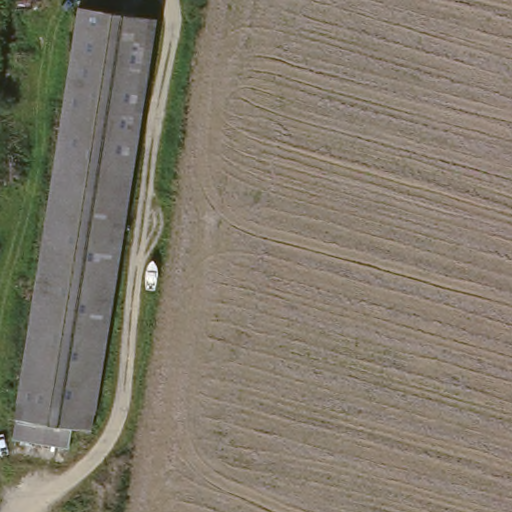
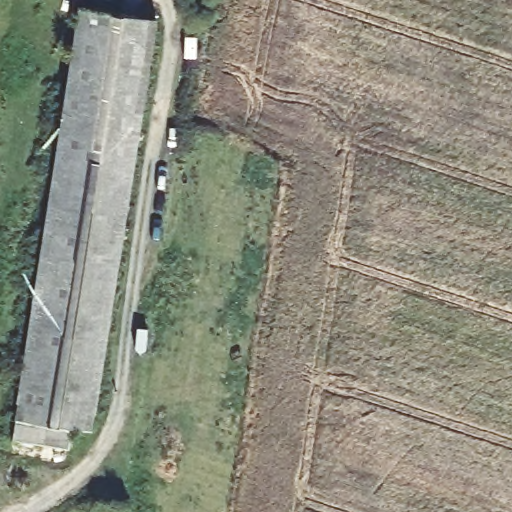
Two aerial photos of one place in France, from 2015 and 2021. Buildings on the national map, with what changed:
unchanged [(80,6),(155,18),(137,127),(62,121),(80,6)]
unchanged [(137,127),(121,235),(44,240),(62,121),(137,127)]
unchanged [(44,240),(121,235),(106,327),(29,331),(44,240)]
unchanged [(106,327),(90,430),(72,428),(69,447),(12,438),(29,331),(106,327)]

